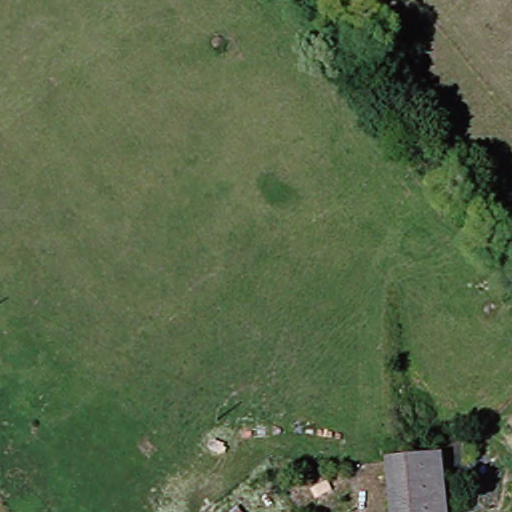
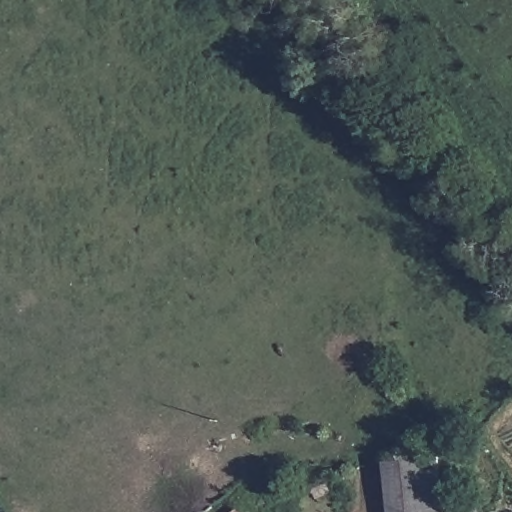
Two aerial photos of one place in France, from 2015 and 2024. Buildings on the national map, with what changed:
unchanged [(457,512),(401,512),(397,461),(453,455),(457,512)]

